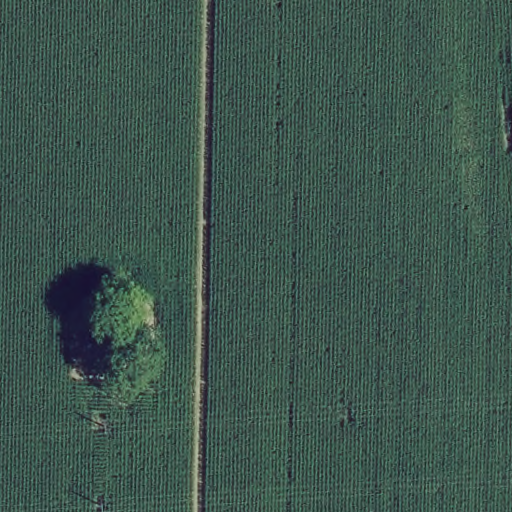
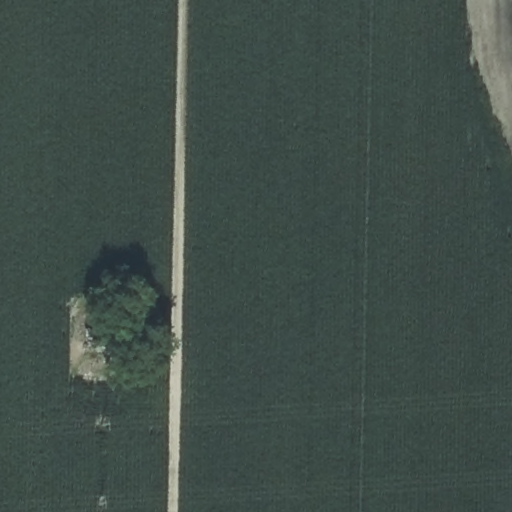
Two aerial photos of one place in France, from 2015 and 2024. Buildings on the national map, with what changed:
unchanged [(145,353),(108,365),(91,311),(127,301),(145,353)]

